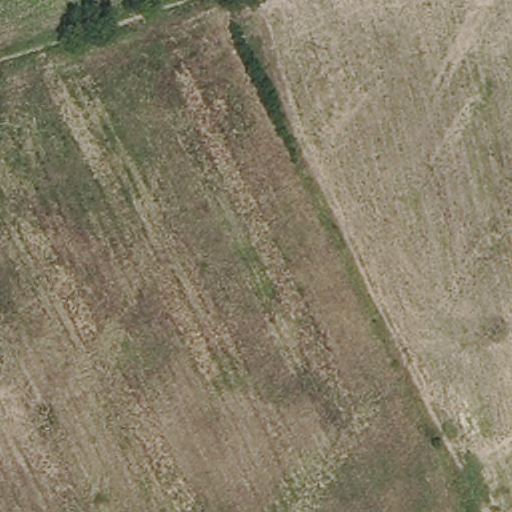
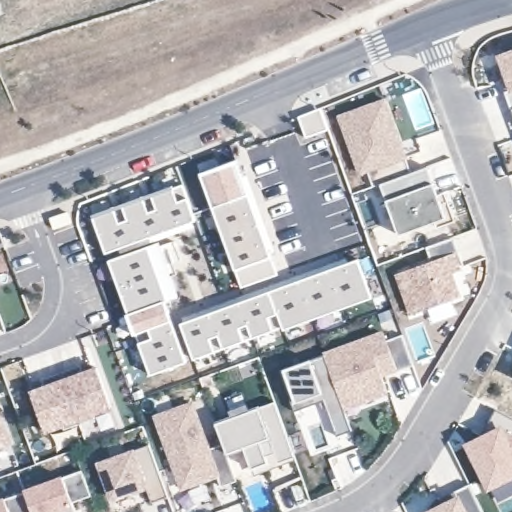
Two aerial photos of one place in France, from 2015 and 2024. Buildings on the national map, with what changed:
new [(495,54),(512,48),(512,107),(510,108),(504,93),(507,92),(495,54)]
new [(385,101),(412,174),(382,185),(375,187),(369,170),(360,173),(340,116),(385,101)]
new [(320,107),(328,130),(305,138),(297,116),(320,107)]
new [(512,107),(512,112),(510,108),(512,107)]
new [(236,159),(260,221),(279,275),(240,289),(198,173),(236,159)]
new [(455,221),(437,227),(436,223),(400,236),(382,185),(412,174),(429,167),(439,195),(445,193),(455,221)]
new [(183,183),(196,221),(158,237),(105,255),(90,215),(183,183)]
new [(72,223),(54,230),(50,219),(69,213),(72,223)]
new [(431,262),(427,248),(454,238),(459,253),(454,254),(460,271),(451,274),(460,298),(412,315),(398,274),(431,262)]
new [(159,242),(178,297),(166,301),(128,313),(108,261),(159,242)]
new [(358,260),(372,298),(283,331),(281,326),(193,359),(181,324),(358,260)]
new [(166,301),(188,362),(150,376),(126,314),(166,301)]
new [(350,429),(338,434),(322,396),(296,404),(284,370),(309,360),(325,354),(384,333),(386,340),(403,333),(415,365),(397,372),(383,377),(388,392),(360,402),(344,408),(350,429)]
new [(91,361),(94,369),(98,367),(112,408),(94,414),(96,419),(81,424),(62,372),(81,365),(91,361)]
new [(32,383),(41,379),(62,372),(81,424),(65,430),(63,426),(44,432),(30,392),(35,390),(32,383)]
new [(233,417),(230,410),(247,404),(250,411),(276,402),(296,458),(278,464),(275,454),(267,457),(269,462),(253,469),(245,449),(228,455),(224,444),(216,422),(233,417)]
new [(192,403),(209,449),(224,444),(228,455),(238,482),(222,488),(218,477),(182,490),(155,416),(192,403)]
new [(495,409),(512,418),(512,477),(490,489),(467,445),(482,435),(495,409)]
new [(10,442),(0,445),(0,414),(10,442)]
new [(150,445),(170,498),(153,504),(146,486),(112,499),(99,464),(150,445)]
new [(83,472),(92,495),(73,503),(76,512),(32,512),(26,494),(25,493),(83,472)]
new [(444,506),(440,499),(454,492),(470,484),(484,512),(430,512),(444,506)]
new [(26,494),(32,512),(0,512),(0,503),(26,494)]

